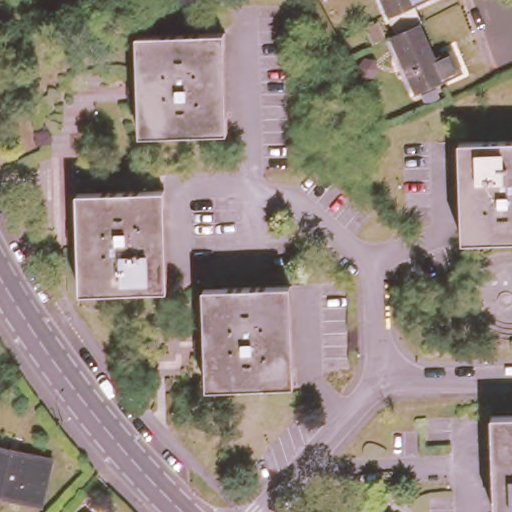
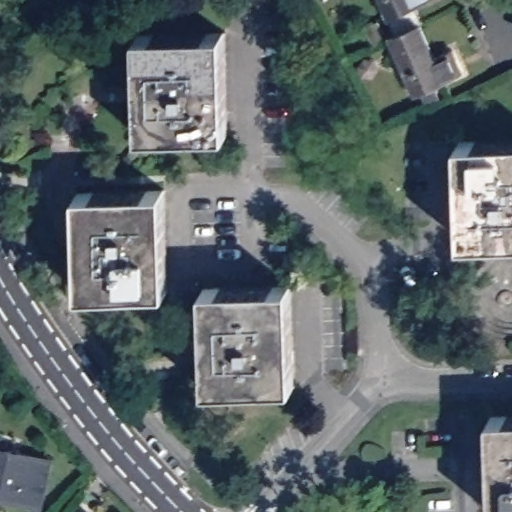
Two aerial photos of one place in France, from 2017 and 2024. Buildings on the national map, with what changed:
unchanged [(382,0),(429,0),(415,5),(420,16),(418,16),(420,26),(396,35),(382,0)]
unchanged [(392,37),(396,35),(420,26),(433,59),(452,51),(460,75),(443,82),(415,93),(392,37)]
unchanged [(137,30),(224,28),(226,128),(140,129),(139,95),(130,95),(129,80),(138,80),(137,30)]
unchanged [(459,142),(512,141),(512,241),(462,242),(459,142)]
unchanged [(80,295),(78,246),(68,247),(67,232),(77,231),(76,196),(162,194),(165,294),(80,295)]
unchanged [(202,287),(290,284),(294,384),(206,386),(205,351),(195,352),(195,337),(204,336),(202,287)]
unchanged [(512,414),(512,512),(498,512),(495,414),(512,414)]
unchanged [(45,504),(0,492),(0,445),(30,453),(57,461),(52,478),(45,504)]
unchanged [(90,512),(83,512),(86,508),(90,512)]

